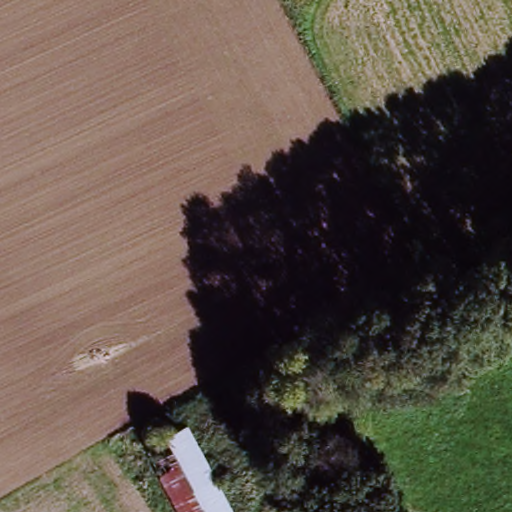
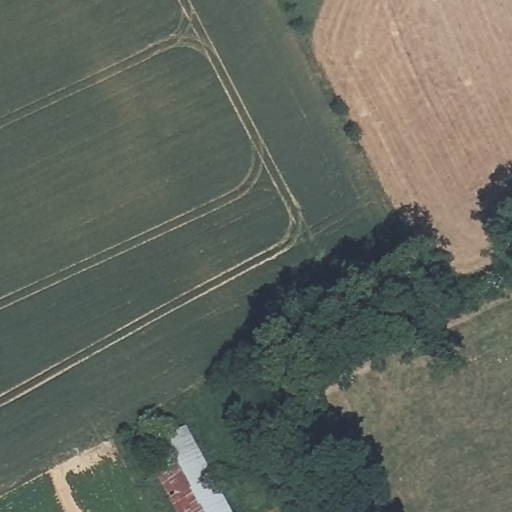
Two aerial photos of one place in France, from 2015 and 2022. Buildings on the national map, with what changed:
unchanged [(228,512),(175,512),(146,456),(157,450),(145,427),(164,417),(176,440),(187,436),(228,512)]

